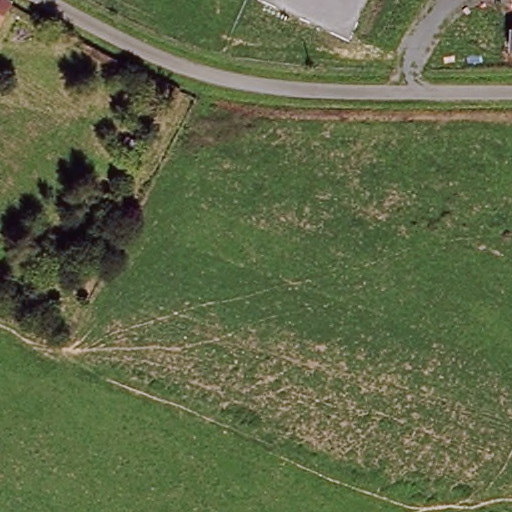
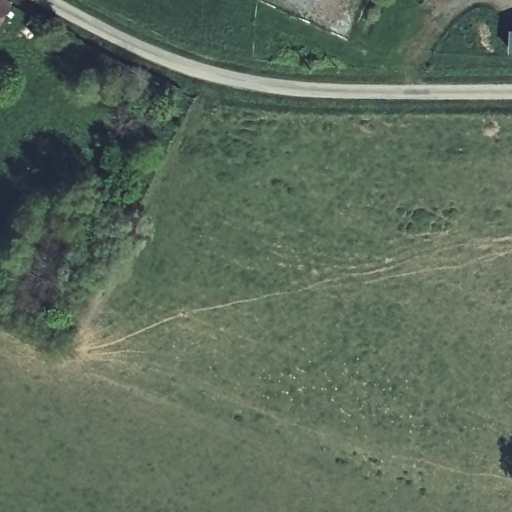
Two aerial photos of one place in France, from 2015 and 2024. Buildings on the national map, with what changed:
unchanged [(7,0),(15,5),(0,32),(0,0),(7,0)]

